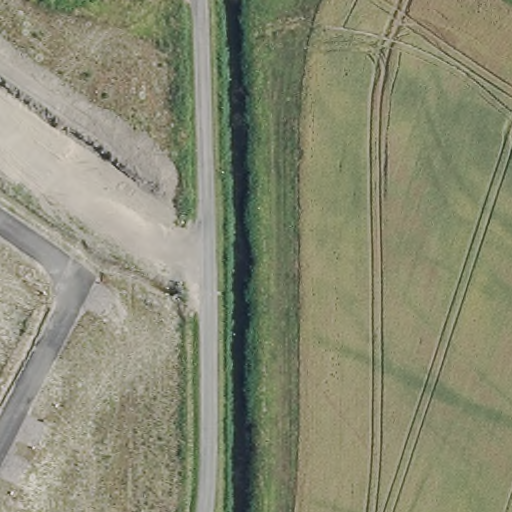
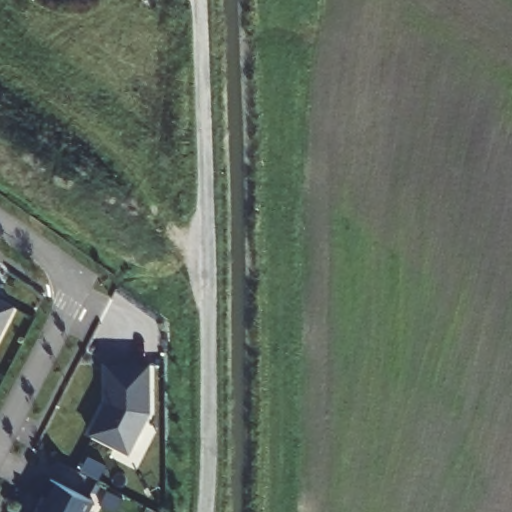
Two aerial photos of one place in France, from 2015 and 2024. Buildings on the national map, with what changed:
new [(18,312),(0,348),(0,303),(18,312)]
new [(108,418),(111,420),(117,407),(112,407),(112,371),(156,371),(156,420),(135,461),(96,441),(108,418)]
new [(87,462),(105,471),(99,483),(81,474),(87,462)]
new [(48,502),(56,487),(98,509),(96,512),(48,512),(52,505),(48,502)]

